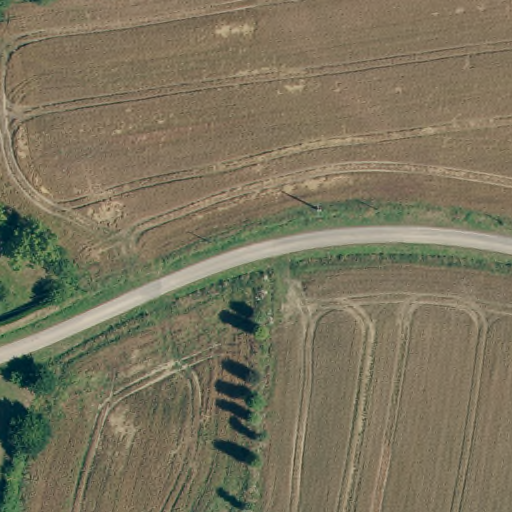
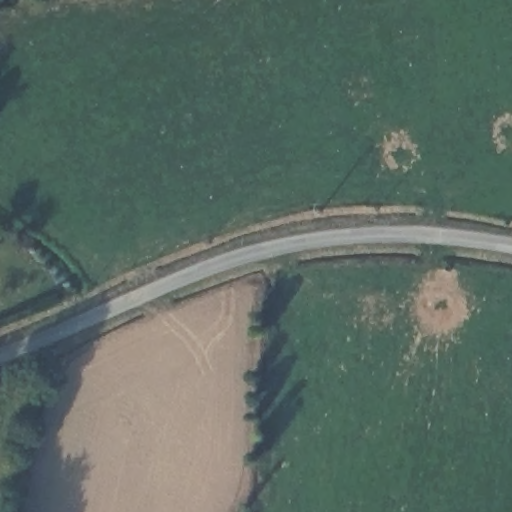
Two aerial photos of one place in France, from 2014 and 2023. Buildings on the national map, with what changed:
[]

